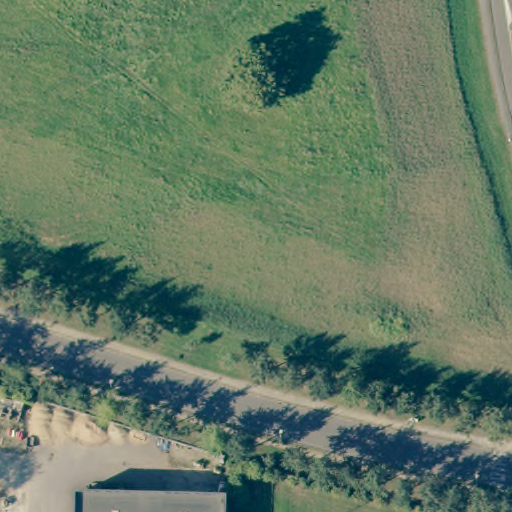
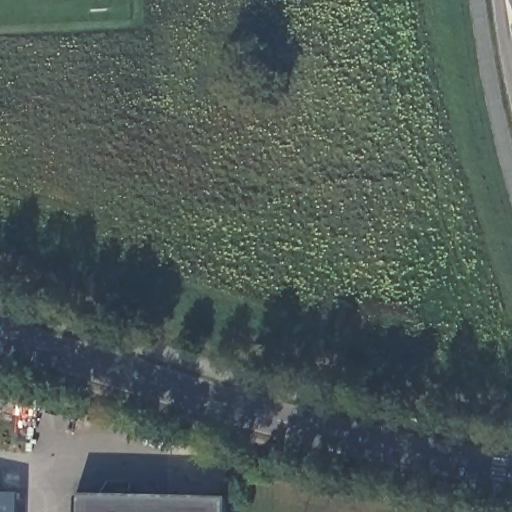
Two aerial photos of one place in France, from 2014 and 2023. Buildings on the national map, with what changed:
new [(18,512),(0,512),(0,493),(18,493),(18,512)]
unchanged [(226,498),(226,512),(74,512),(74,496),(226,498)]

